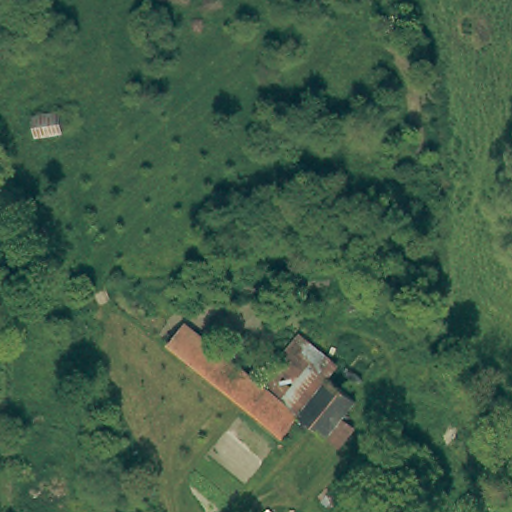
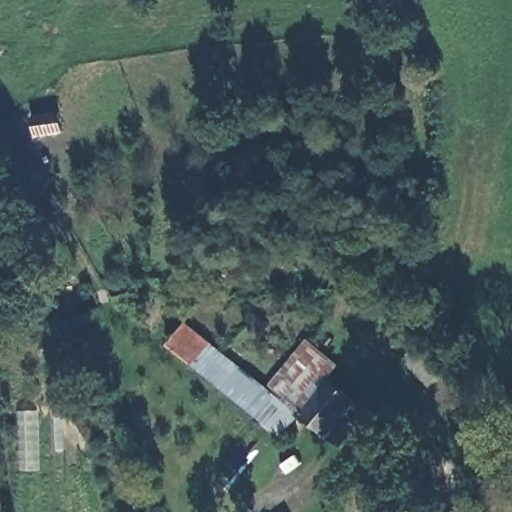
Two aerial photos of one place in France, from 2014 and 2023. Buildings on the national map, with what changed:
unchanged [(67,129),(46,134),(41,119),(65,116),(67,129)]
unchanged [(287,437),(176,352),(193,332),(260,384),(303,418),(287,437)]
unchanged [(260,384),(301,338),(344,371),(334,382),(303,418),(260,384)]
unchanged [(341,448),(329,439),(303,418),(334,382),(362,404),(344,423),(355,431),(341,448)]

